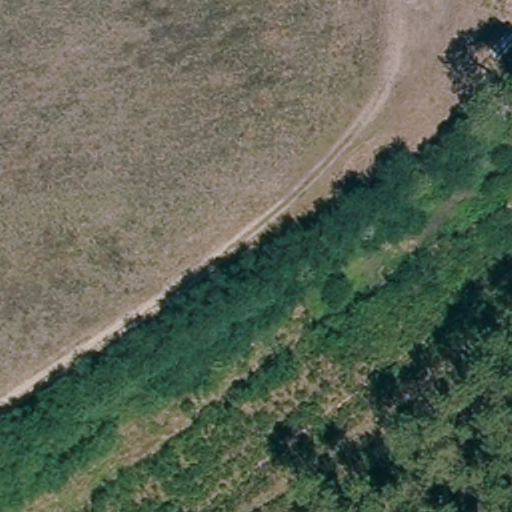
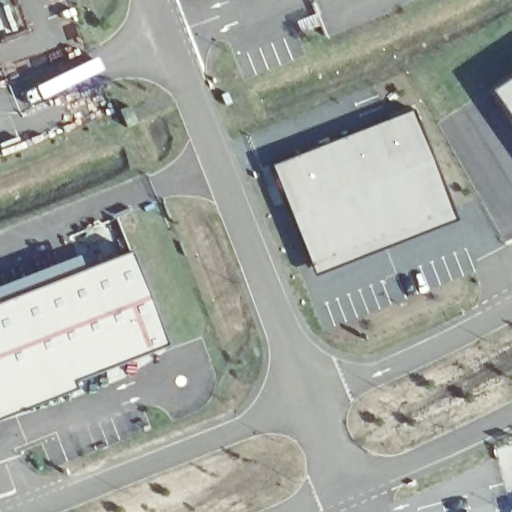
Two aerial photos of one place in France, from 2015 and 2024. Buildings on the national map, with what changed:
new [(512,128),(486,90),(512,72),(512,128)]
new [(453,221),(313,275),(268,163),(410,109),(453,221)]
new [(79,271),(128,252),(165,345),(70,381),(73,390),(0,418),(0,286),(75,256),(79,271)]

